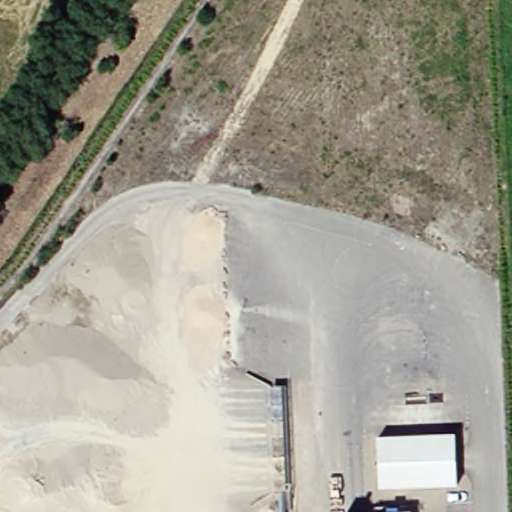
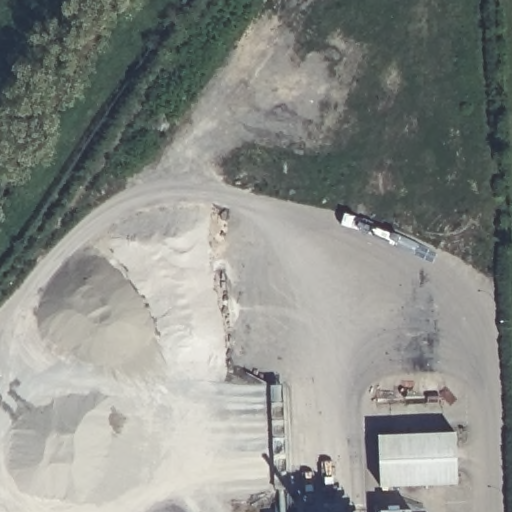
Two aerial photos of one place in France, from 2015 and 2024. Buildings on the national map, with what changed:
unchanged [(286,387),(291,488),(272,489),(268,387),(286,387)]
unchanged [(380,439),(455,435),(457,485),(382,489),(380,439)]
unchanged [(412,511),(413,512),(379,512),(412,511)]

